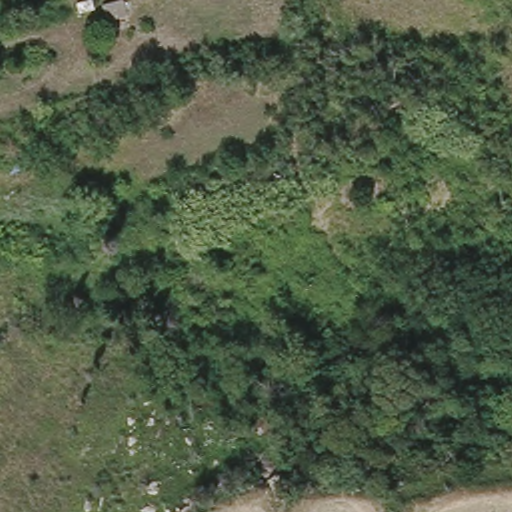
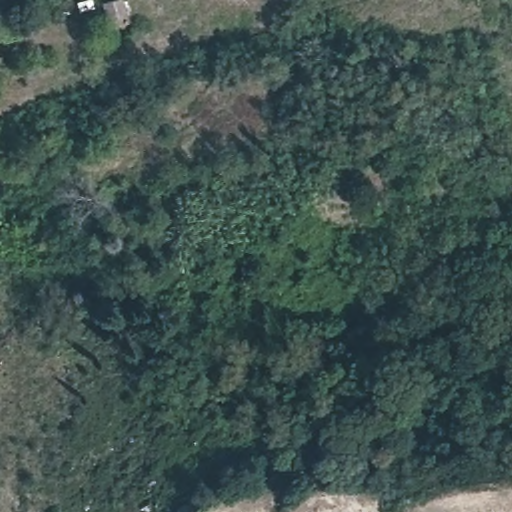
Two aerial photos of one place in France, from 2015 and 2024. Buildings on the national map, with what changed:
unchanged [(76,8),(75,0),(94,0),(96,4),(76,8)]
unchanged [(106,15),(102,0),(126,0),(128,9),(106,15)]

